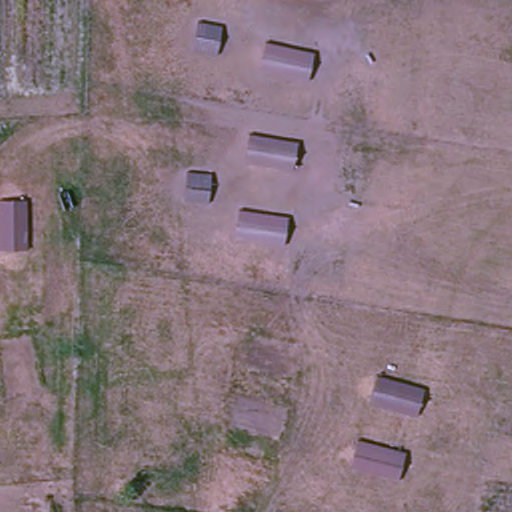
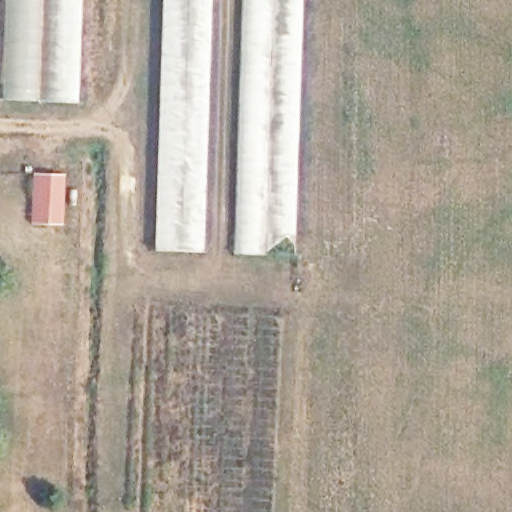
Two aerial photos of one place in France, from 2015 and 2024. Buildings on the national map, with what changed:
new [(80,0),(76,104),(0,98),(3,0),(80,0)]
new [(159,0),(209,0),(201,251),(152,250),(155,130),(159,0)]
new [(302,0),(295,256),(235,255),(242,0),(302,0)]
new [(31,172),(65,174),(62,225),(30,223),(31,172)]

